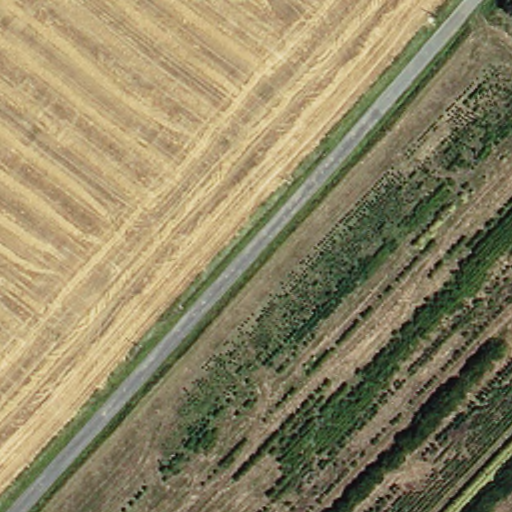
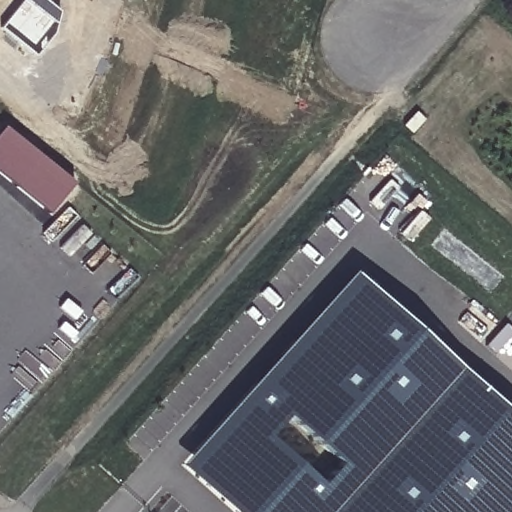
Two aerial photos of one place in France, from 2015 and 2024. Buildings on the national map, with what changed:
new [(259,512),(231,512),(183,472),(349,273),(361,283),(206,467),(259,512)]
new [(444,390),(512,447),(512,512),(259,512),(206,467),(361,283),(462,368),(444,390)]
new [(462,368),(512,410),(512,447),(444,390),(462,368)]

